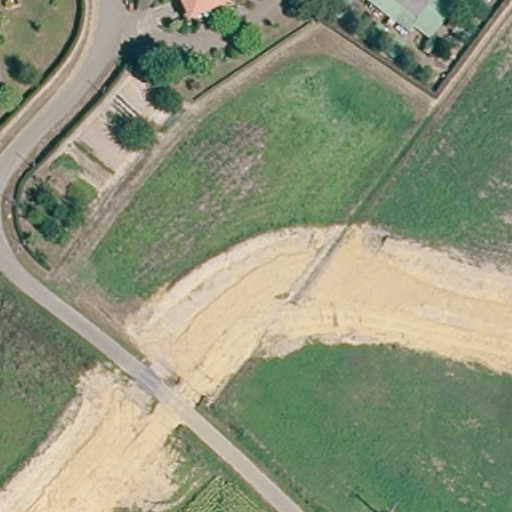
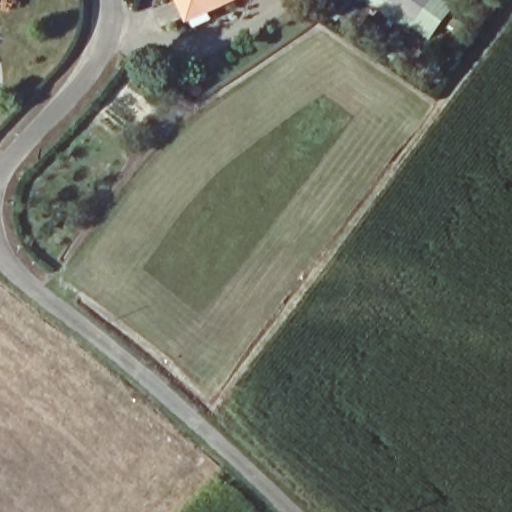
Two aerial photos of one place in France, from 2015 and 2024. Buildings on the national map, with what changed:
unchanged [(182,0),(234,0),(188,16),(182,0)]
unchanged [(407,12),(397,23),(365,0),(434,0),(418,20),(407,12)]

